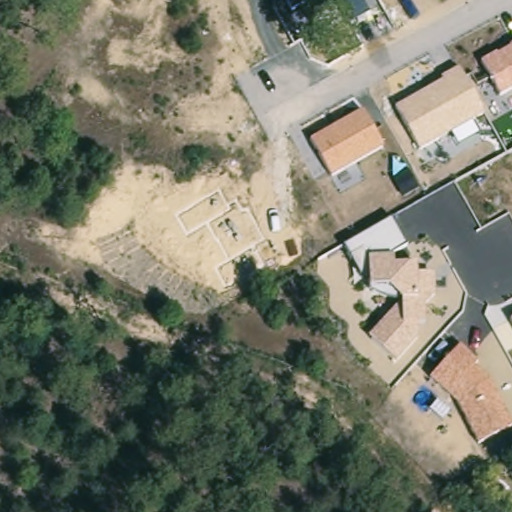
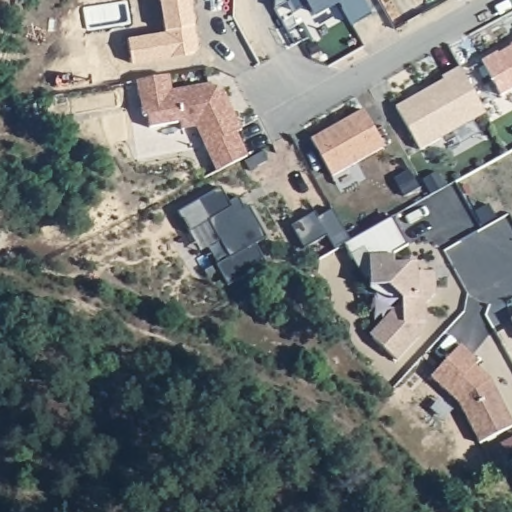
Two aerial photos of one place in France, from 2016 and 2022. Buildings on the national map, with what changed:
unchanged [(308,13),(302,3),(290,9),(286,0),(332,0),(308,13)]
unchanged [(335,0),(363,0),(368,12),(348,23),(335,0)]
unchanged [(512,45),(512,86),(498,94),(480,62),(512,45)]
unchanged [(441,80),(439,76),(458,67),(485,116),(472,124),(477,132),(455,144),(450,135),(418,152),(395,108),(441,80)]
new [(180,130),(179,122),(149,127),(146,114),(141,115),(135,81),(167,76),(170,91),(209,85),(222,91),(231,110),(240,131),(235,133),(246,157),(216,172),(204,146),(195,127),(180,130)]
unchanged [(330,177),(309,140),(365,109),(385,147),(330,177)]
new [(220,188),(228,203),(237,198),(244,210),(247,207),(266,239),(255,245),(265,264),(227,286),(215,265),(228,258),(207,222),(188,233),(176,212),(220,188)]
demolished [(313,250),(295,213),(315,203),(333,238),(313,250)]
unchanged [(392,254),(391,264),(415,265),(415,272),(435,272),(436,292),(424,305),(424,322),(416,323),(417,339),(396,360),(369,333),(397,302),(365,290),(364,280),(344,245),(391,219),(406,245),(392,254)]
unchanged [(509,318),(512,316),(512,324),(509,318)]
unchanged [(476,367),(490,379),(512,426),(512,427),(477,443),(465,415),(453,400),(430,378),(459,344),(477,362),(476,367)]

